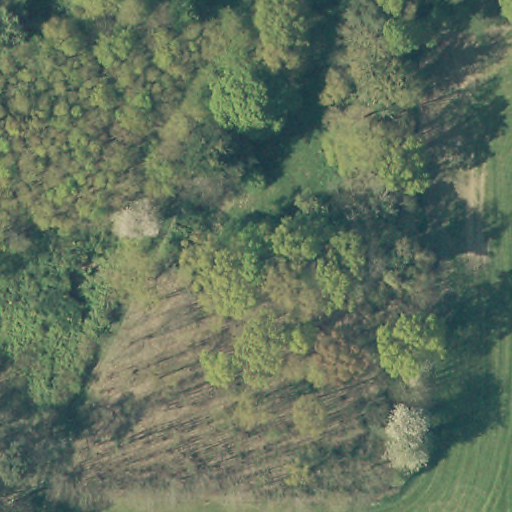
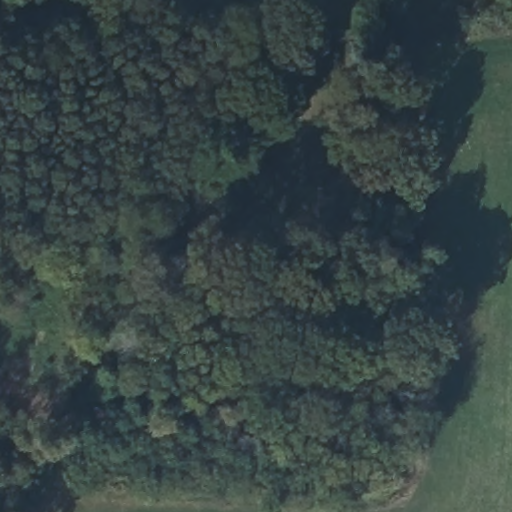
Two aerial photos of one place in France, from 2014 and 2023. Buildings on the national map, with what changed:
unchanged [(187,251),(190,254),(190,258),(189,262),(187,264),(183,266),(179,266),(176,265),(173,262),(172,259),(173,255),(175,252),(178,250),(180,250),(184,250),(187,251)]

